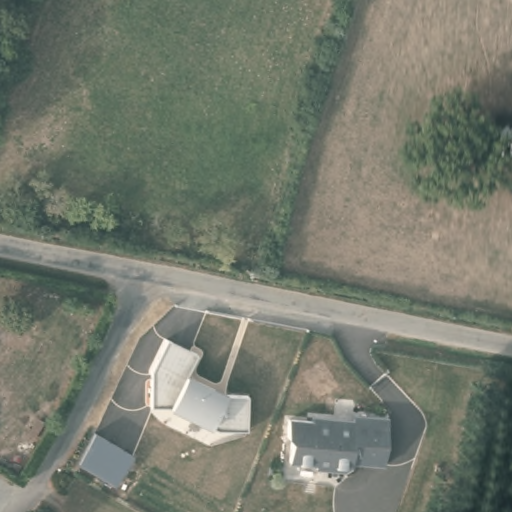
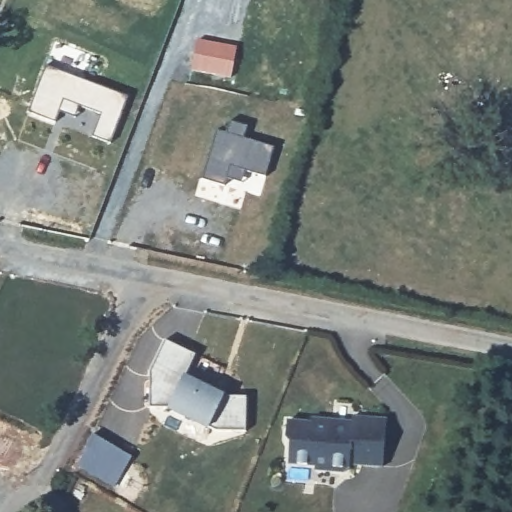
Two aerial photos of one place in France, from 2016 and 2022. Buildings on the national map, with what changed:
new [(238,46),(231,77),(192,70),(198,39),(238,46)]
new [(128,97),(110,142),(93,136),(101,114),(78,105),(74,116),(59,110),(54,121),(29,112),(46,66),(128,97)]
new [(227,133),(230,121),(247,126),(244,138),(273,147),(265,176),(247,171),(243,183),(227,179),(225,185),(201,179),(216,130),(227,133)]
unchanged [(246,429),(209,428),(210,428),(169,408),(150,407),(150,372),(166,342),(194,356),(185,375),(225,395),(245,397),(246,429)]
unchanged [(300,467),(273,465),(275,443),(271,438),(273,422),(296,425),(297,421),(318,423),(317,427),(337,429),(338,420),(372,424),(367,471),(334,467),(333,471),(329,475),(315,473),(299,472),(300,467)]
unchanged [(113,487),(79,466),(95,435),(131,457),(113,487)]

